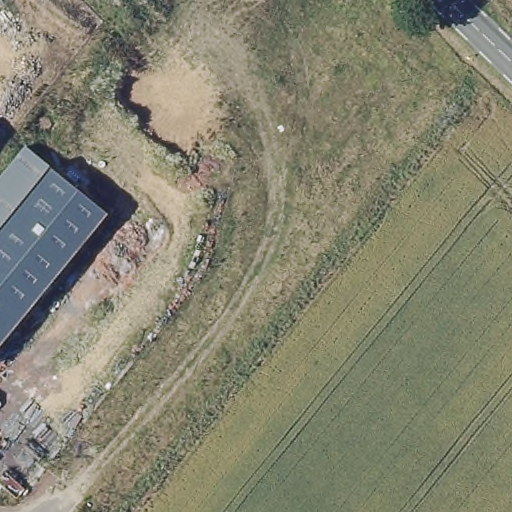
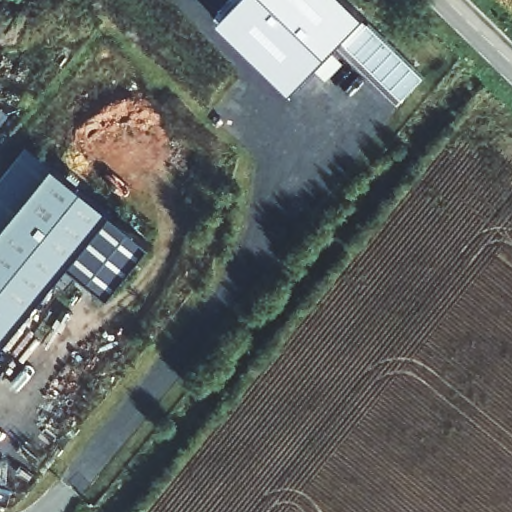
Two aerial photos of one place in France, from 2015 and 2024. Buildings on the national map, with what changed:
new [(221,22),(243,0),(348,0),(367,17),(344,40),(293,93),(221,22)]
new [(426,76),(405,100),(344,40),(367,17),(426,76)]
new [(11,112),(0,126),(0,103),(11,112)]
unchanged [(109,211),(0,344),(0,177),(25,146),(109,211)]
new [(148,244),(106,296),(67,263),(109,211),(148,244)]

